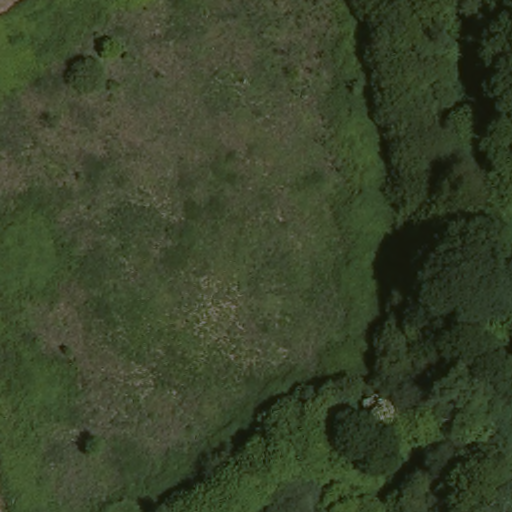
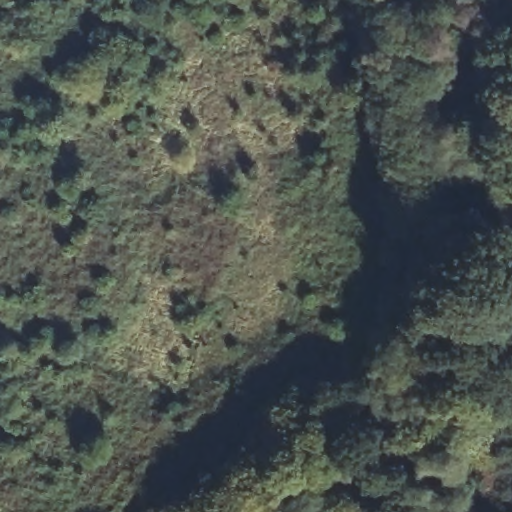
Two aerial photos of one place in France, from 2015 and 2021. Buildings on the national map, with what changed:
[]

